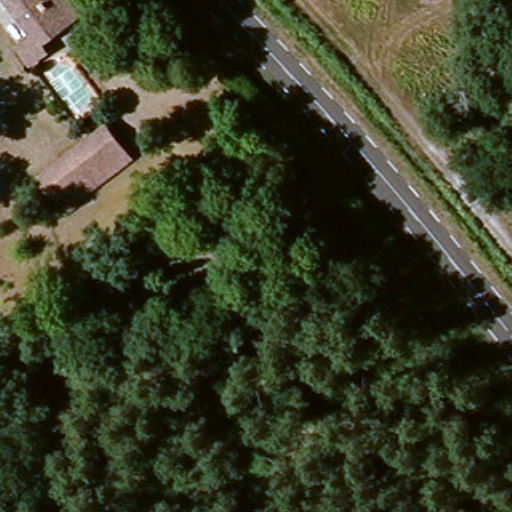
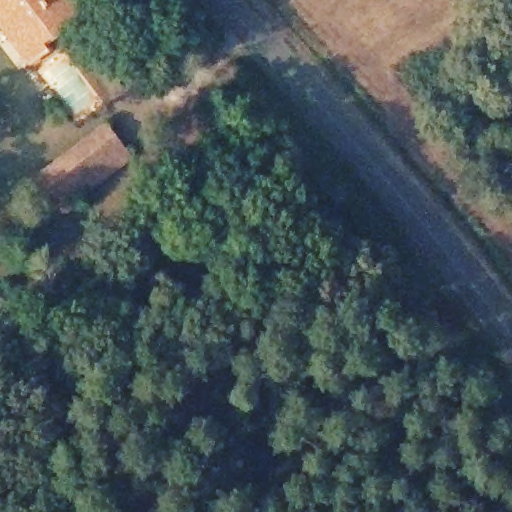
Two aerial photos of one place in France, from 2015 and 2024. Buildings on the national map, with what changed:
unchanged [(8,0),(63,0),(71,12),(32,38),(8,0)]
unchanged [(59,207),(35,170),(105,122),(129,156),(59,207)]

